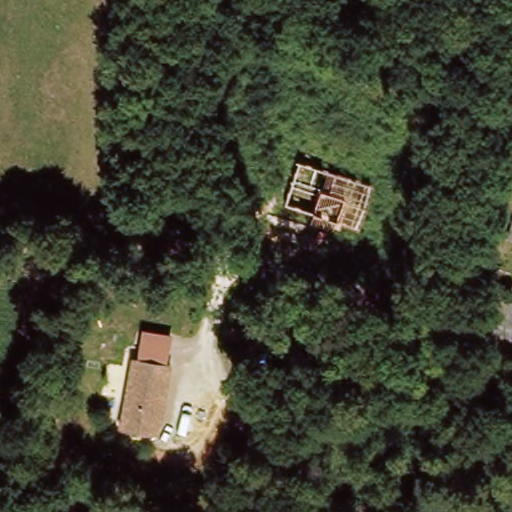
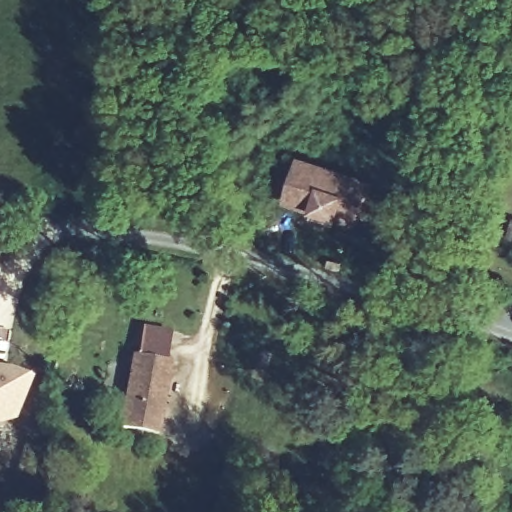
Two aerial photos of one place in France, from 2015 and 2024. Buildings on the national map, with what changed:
unchanged [(371,182),(357,226),(285,204),(297,161),(371,182)]
unchanged [(171,332),(164,363),(135,358),(141,328),(171,332)]
unchanged [(135,358),(168,363),(156,435),(122,429),(135,358)]
new [(31,377),(14,422),(0,427),(0,367),(8,368),(31,377)]

